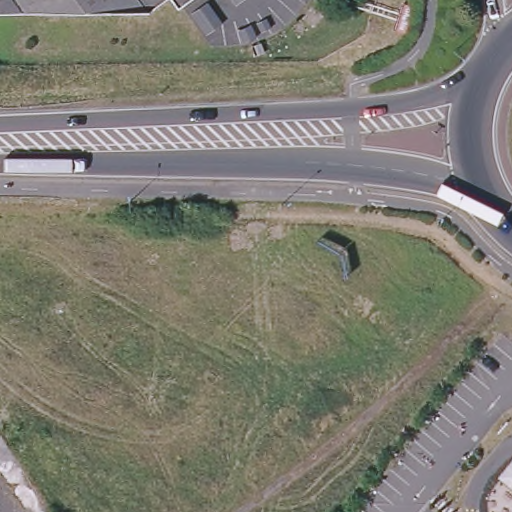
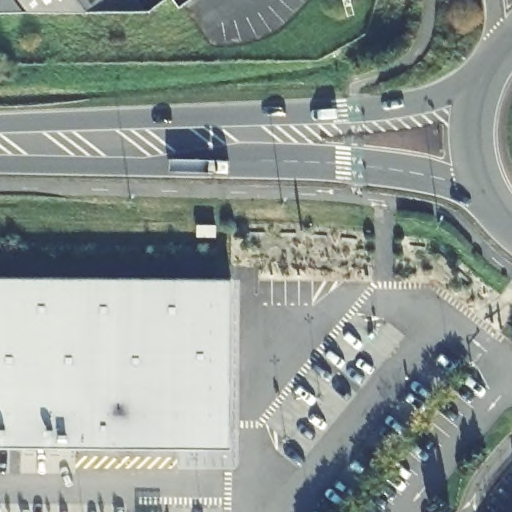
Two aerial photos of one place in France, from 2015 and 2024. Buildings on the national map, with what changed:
unchanged [(152,17),(0,16),(0,0),(165,0),(149,11),(152,17)]
unchanged [(173,0),(191,0),(180,9),(173,0)]
new [(94,277),(107,277),(107,281),(231,282),(230,427),(210,446),(0,444),(0,280),(94,281),(94,277)]
unchanged [(512,467),(512,482),(505,476),(512,467)]

